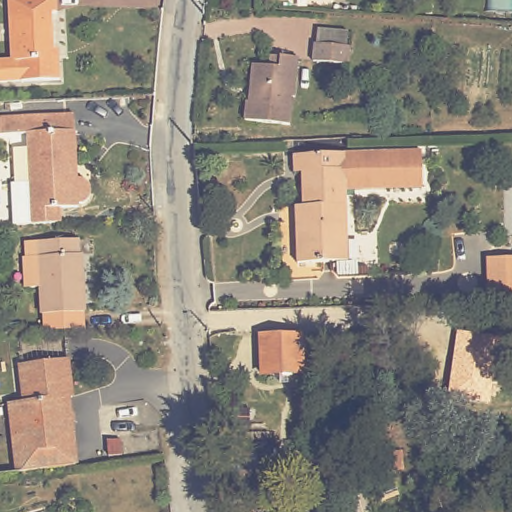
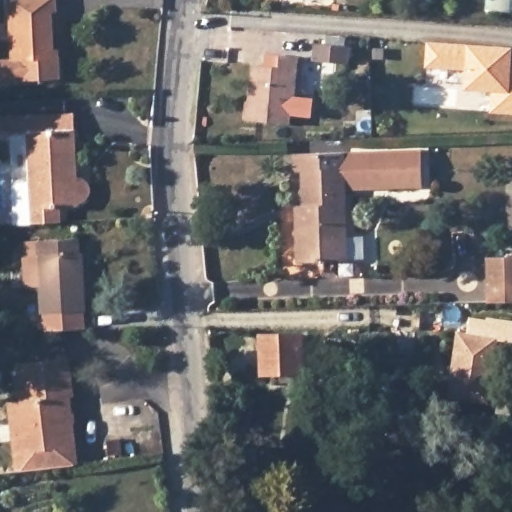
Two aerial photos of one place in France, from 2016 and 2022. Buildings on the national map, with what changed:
unchanged [(6,62),(12,62),(11,0),(58,0),(58,17),(52,17),(53,59),(61,58),(63,80),(22,81),(7,82),(6,62)]
unchanged [(352,38),(350,59),(312,56),(314,35),(352,38)]
new [(428,46),(511,49),(510,61),(512,61),(512,113),(496,112),(497,92),(470,92),(471,70),(427,69),(428,46)]
unchanged [(253,67),(270,68),(271,57),(301,60),(297,97),(293,97),(292,112),(250,109),(253,67)]
unchanged [(28,171),(26,133),(0,135),(0,118),(72,114),(76,176),(79,176),(80,176),(81,176),(83,177),(84,177),(86,179),(87,180),(88,181),(89,182),(89,183),(90,185),(90,186),(90,187),(90,189),(90,191),(90,192),(89,193),(89,194),(88,196),(86,197),(86,198),(85,199),(84,199),(81,200),(81,201),(80,201),(78,201),(78,204),(60,205),(61,220),(31,222),(15,222),(11,172),(28,171)]
unchanged [(335,263),(294,265),(292,206),(300,205),(299,175),(291,175),(290,152),(421,147),(423,185),(344,188),(347,244),(347,262),(335,263)]
unchanged [(44,301),(39,302),(38,275),(21,276),(20,245),(24,244),(23,230),(76,229),(76,242),(81,242),(83,300),(81,300),(82,318),(45,320),(44,301)]
unchanged [(485,303),(481,257),(512,255),(512,301),(485,303)]
unchanged [(458,331),(503,336),(492,403),(449,397),(458,331)]
unchanged [(299,341),(302,380),(261,383),(258,343),(299,341)]
unchanged [(71,463),(61,465),(23,470),(16,420),(14,402),(29,400),(24,363),(70,357),(75,395),(71,396),(78,445),(81,462),(71,463)]

